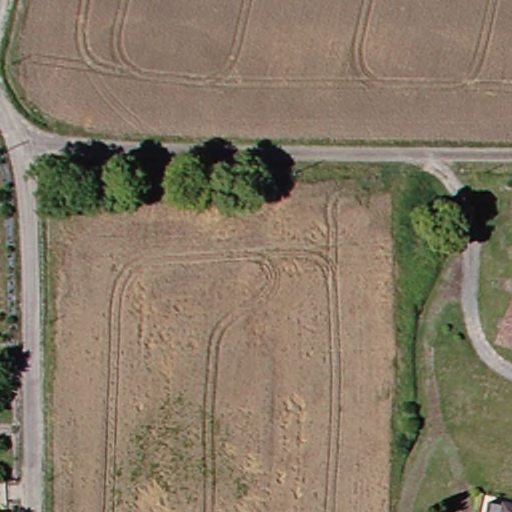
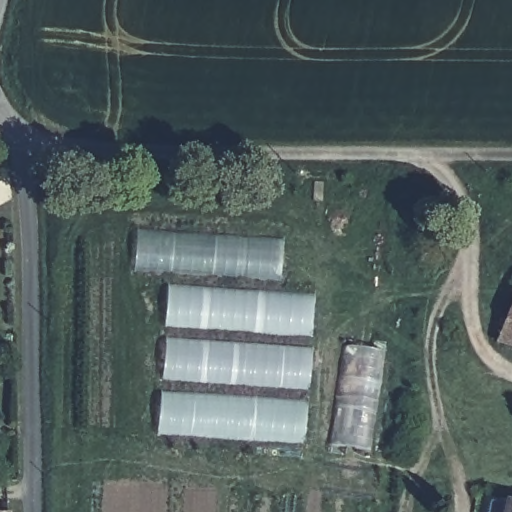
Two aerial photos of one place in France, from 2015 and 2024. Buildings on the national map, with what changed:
new [(134,272),(136,228),(285,238),(280,280),(134,272)]
new [(313,337),(167,327),(170,285),(316,297),(313,337)]
unchanged [(509,295),(512,296),(512,339),(497,335),(509,295)]
new [(169,339),(312,351),(308,390),(164,377),(169,339)]
new [(328,444),(343,344),(387,351),(371,453),(328,444)]
new [(306,401),(304,443),(160,435),(163,394),(306,401)]
unchanged [(512,512),(479,512),(485,492),(512,500),(512,512)]

